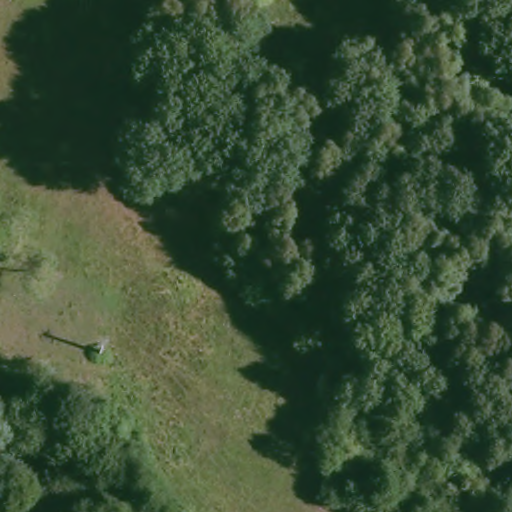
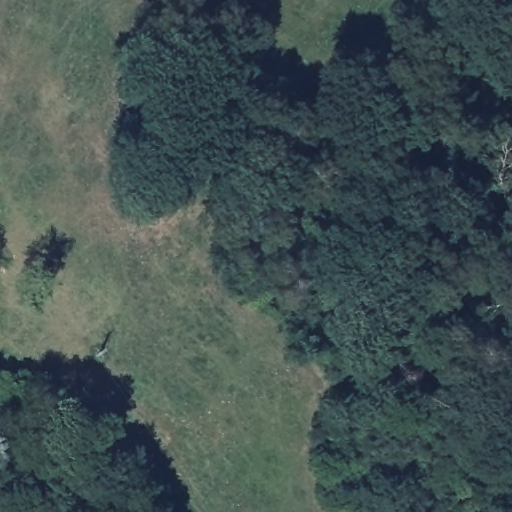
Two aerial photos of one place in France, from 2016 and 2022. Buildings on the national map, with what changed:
[]

